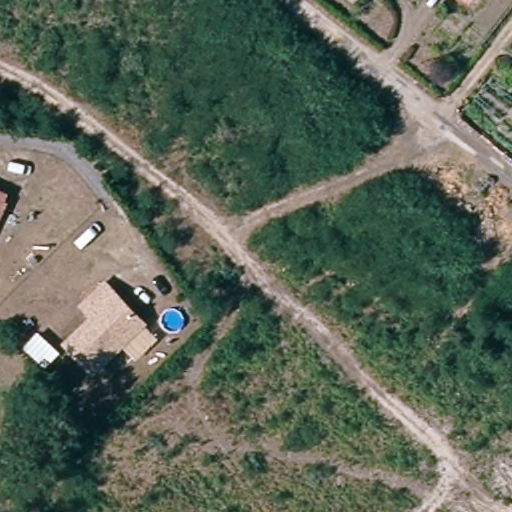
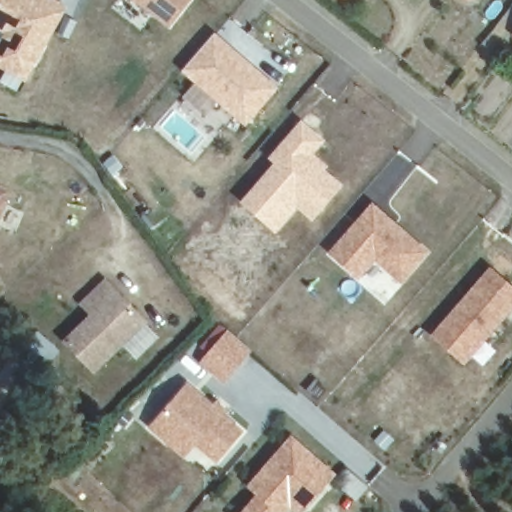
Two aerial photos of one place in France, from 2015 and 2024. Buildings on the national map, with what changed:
new [(26,81),(0,68),(0,40),(4,34),(0,32),(0,0),(59,0),(67,5),(26,81)]
new [(132,0),(192,0),(170,30),(132,0)]
new [(278,89),(245,126),(181,71),(215,33),(278,89)]
unchanged [(512,38),(512,39),(511,39),(512,38)]
new [(325,140),(314,153),(328,165),(325,170),(342,184),(313,222),(297,208),(275,234),(238,203),(273,163),(266,158),(300,120),(325,140)]
unchanged [(0,200),(0,194),(2,195),(0,200)]
new [(428,253),(401,284),(374,261),(359,280),(326,255),(371,201),(428,253)]
new [(512,310),(464,365),(429,335),(490,267),(512,286),(512,310)]
unchanged [(122,346),(97,372),(70,343),(96,316),(85,305),(106,282),(143,320),(146,323),(122,346)]
new [(252,347),(223,383),(199,363),(227,328),(252,347)]
new [(212,404),(216,400),(227,410),(224,414),(244,431),(216,464),(196,445),(184,459),(148,427),(189,382),(212,404)]
new [(335,473),(304,512),(293,512),(289,509),(286,512),(239,512),(255,494),(245,486),(291,436),(335,473)]

